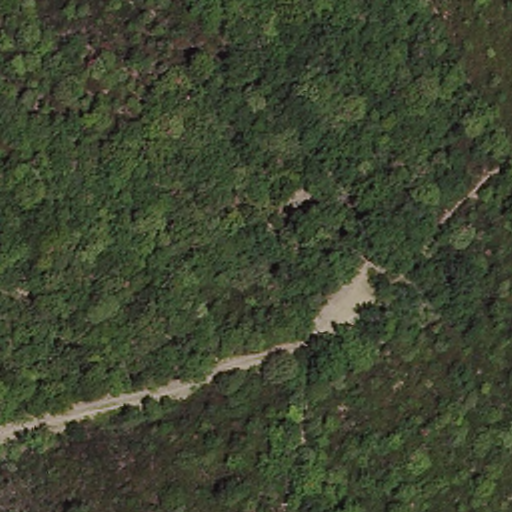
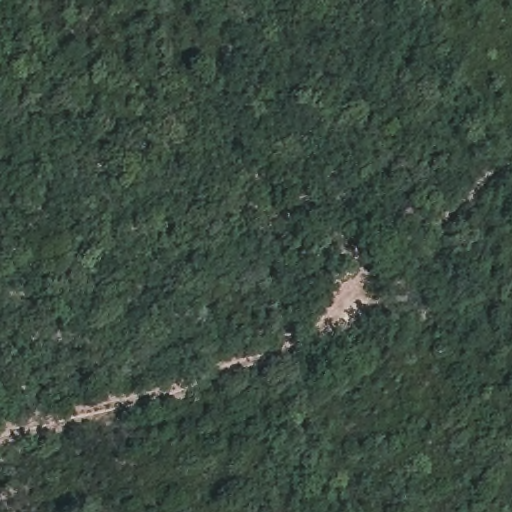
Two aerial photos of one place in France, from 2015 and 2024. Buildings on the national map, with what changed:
unchanged [(407,250),(408,252),(390,267),(375,253),(398,231),(412,244),(407,250)]
unchanged [(402,286),(420,270),(430,281),(412,297),(402,286)]

